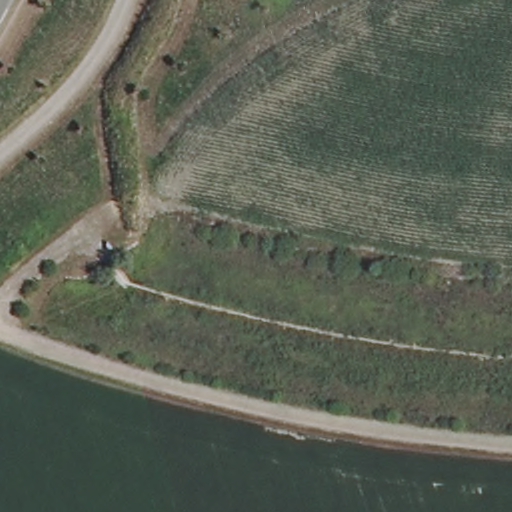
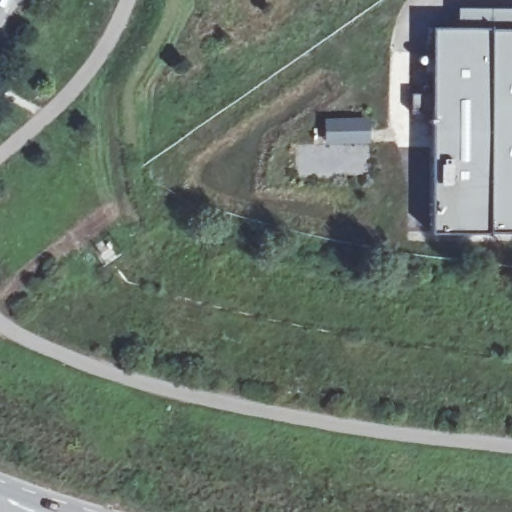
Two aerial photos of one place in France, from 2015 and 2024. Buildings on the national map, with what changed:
new [(432,234),(432,27),(458,27),(458,9),(512,9),(512,233),(432,234)]
new [(367,120),(368,141),(327,142),(327,121),(367,120)]

